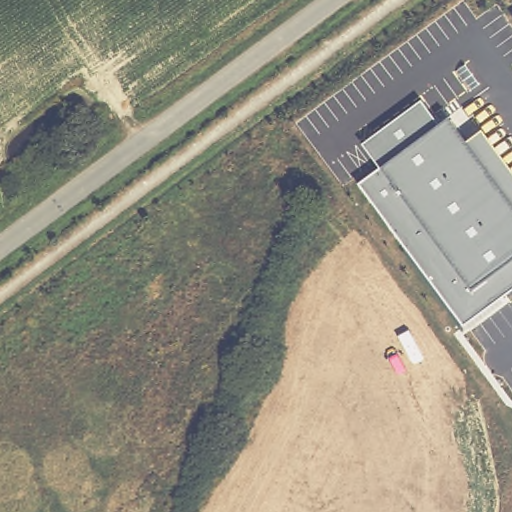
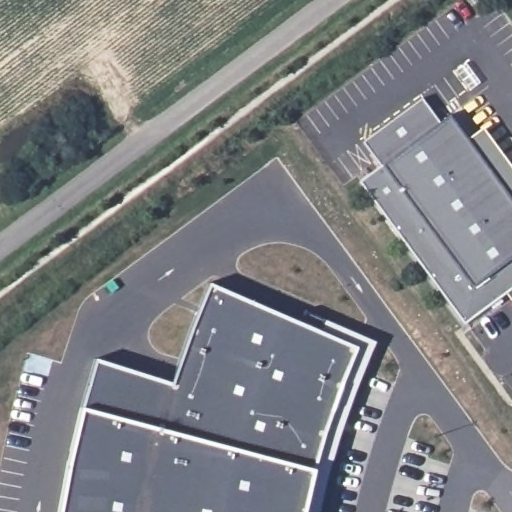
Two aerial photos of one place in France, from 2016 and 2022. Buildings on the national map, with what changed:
unchanged [(439,124),(448,119),(465,140),(482,127),(512,169),(512,300),(510,301),(504,293),(462,326),(358,182),(379,167),(363,143),(422,99),(439,124)]
new [(80,406),(93,357),(171,382),(192,320),(208,280),(300,321),(304,312),(374,341),(354,391),(335,446),(321,506),(319,512),(57,512),(67,454),(80,406)]

